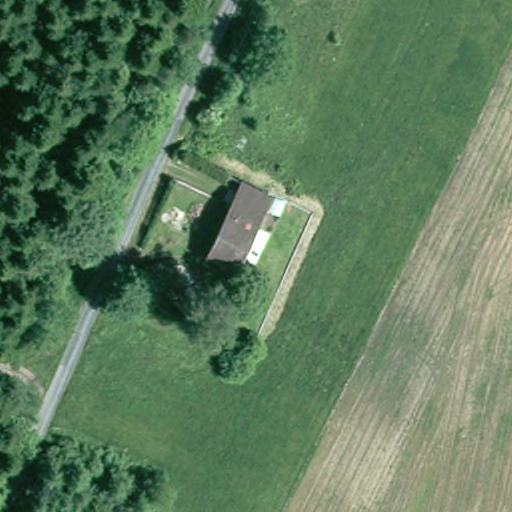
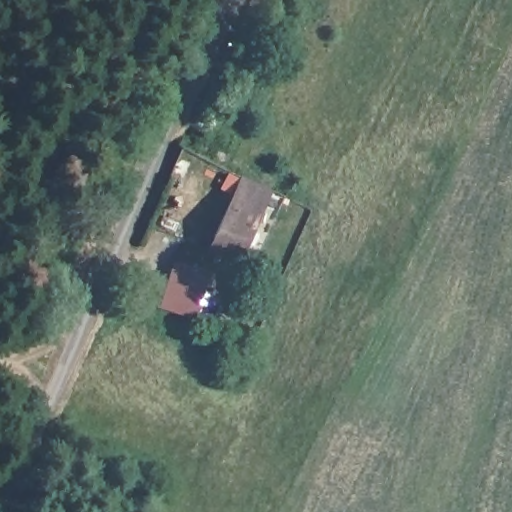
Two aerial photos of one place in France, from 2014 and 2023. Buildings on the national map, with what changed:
unchanged [(282,196),(258,260),(206,239),(230,176),(282,196)]
new [(195,317),(158,308),(172,262),(209,270),(195,317)]

